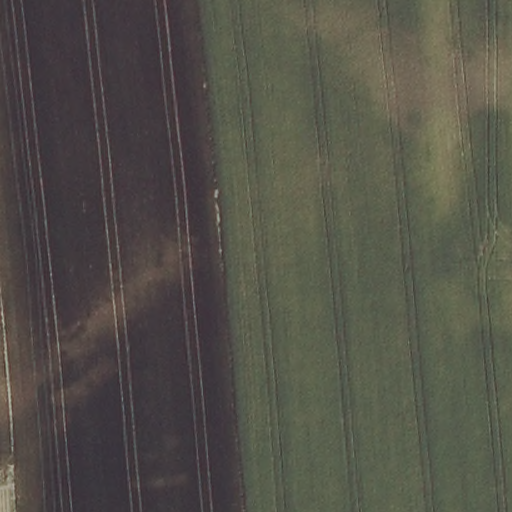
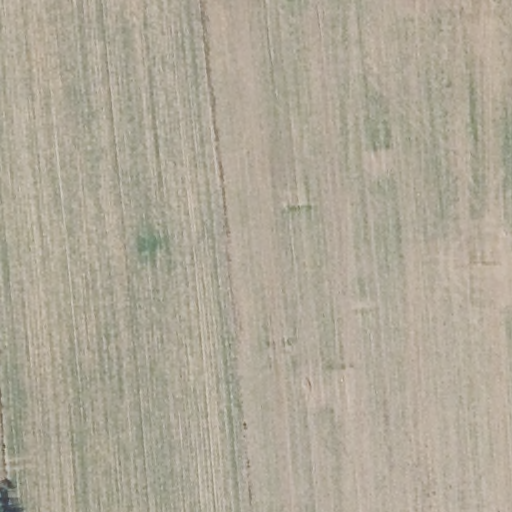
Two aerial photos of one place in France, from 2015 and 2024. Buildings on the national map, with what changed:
[]

